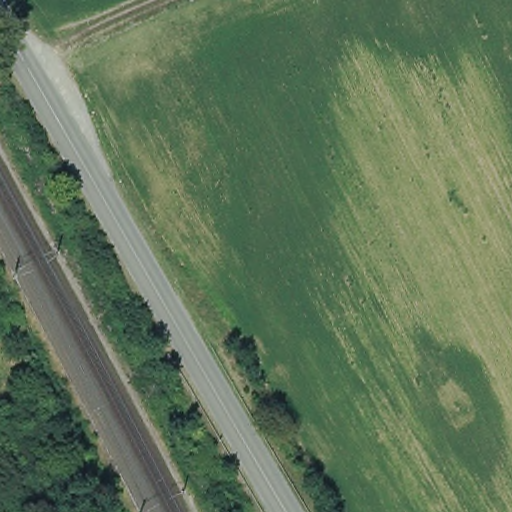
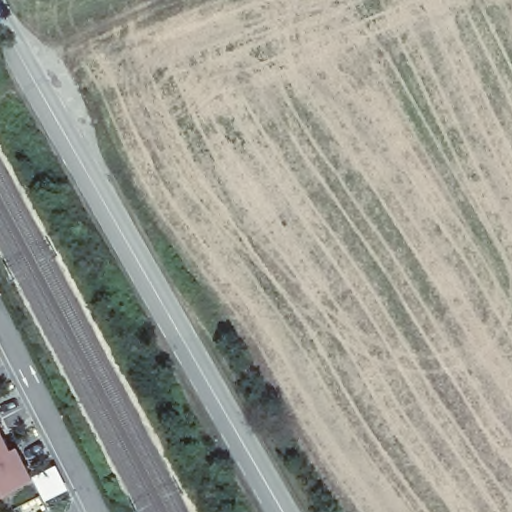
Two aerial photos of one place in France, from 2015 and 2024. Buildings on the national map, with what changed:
new [(0,497),(0,422),(13,449),(20,446),(36,478),(0,497)]

